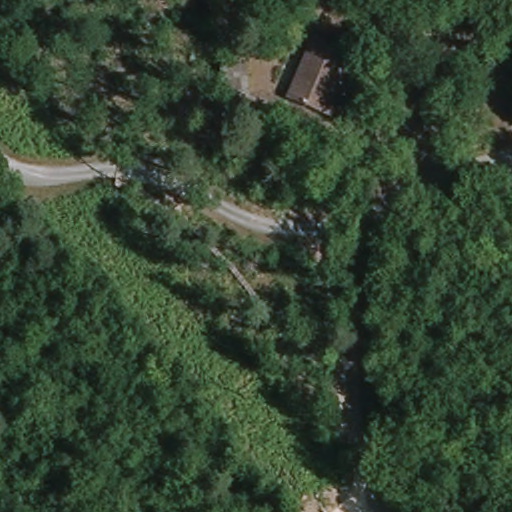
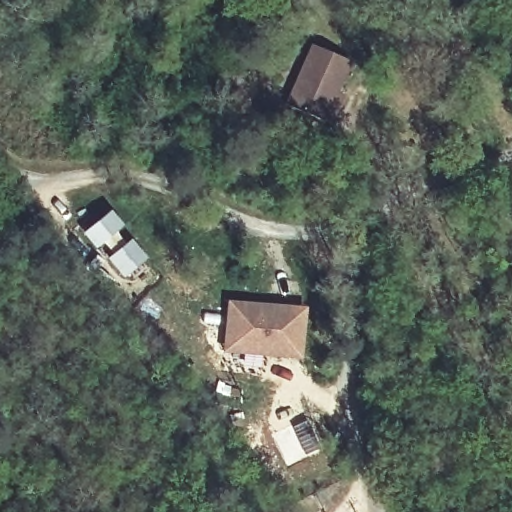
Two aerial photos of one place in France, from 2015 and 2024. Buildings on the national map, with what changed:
unchanged [(287,107),(312,49),(347,63),(322,122),(287,107)]
unchanged [(220,110),(218,71),(246,69),(249,108),(220,110)]
new [(227,301),(305,307),(301,357),(224,352),(227,301)]

